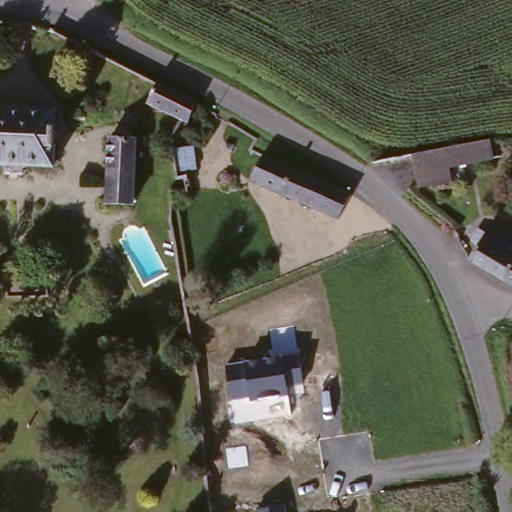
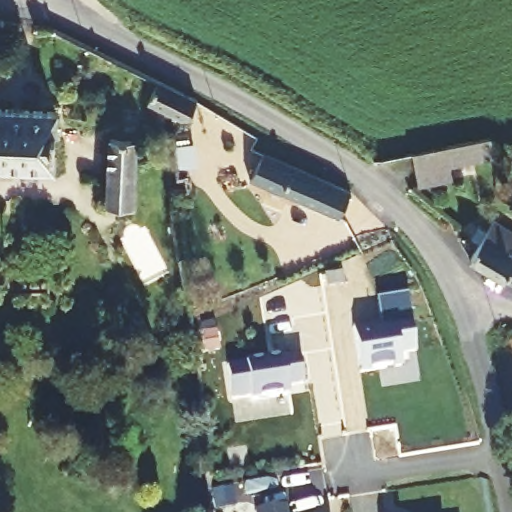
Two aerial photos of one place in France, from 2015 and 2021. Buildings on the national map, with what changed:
unchanged [(152,112),(164,90),(200,108),(195,119),(190,131),(185,130),(152,112)]
unchanged [(23,171),(5,169),(5,160),(0,159),(0,104),(58,108),(55,161),(24,160),(23,171)]
unchanged [(109,141),(131,142),(126,209),(122,210),(103,208),(105,188),(109,141)]
unchanged [(490,165),(448,173),(450,188),(417,193),(410,160),(460,151),(487,147),(490,165)]
unchanged [(350,199),(348,201),(337,222),(257,186),(265,160),(350,199)]
unchanged [(508,288),(474,269),(482,255),(475,251),(482,238),(489,242),(496,230),(512,238),(512,290),(508,288)]
new [(416,351),(400,353),(402,368),(359,374),(352,328),(379,323),(375,299),(406,294),(416,351)]
unchanged [(252,402),(251,399),(230,402),(224,365),(297,355),(302,383),(288,384),(290,396),(252,402)]
unchanged [(255,510),(285,506),(286,512),(255,512),(255,510)]

